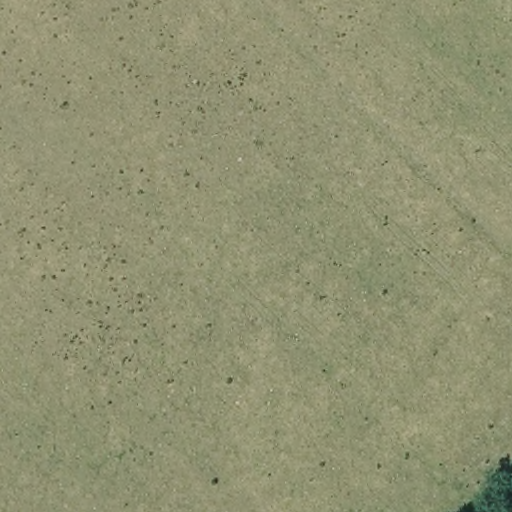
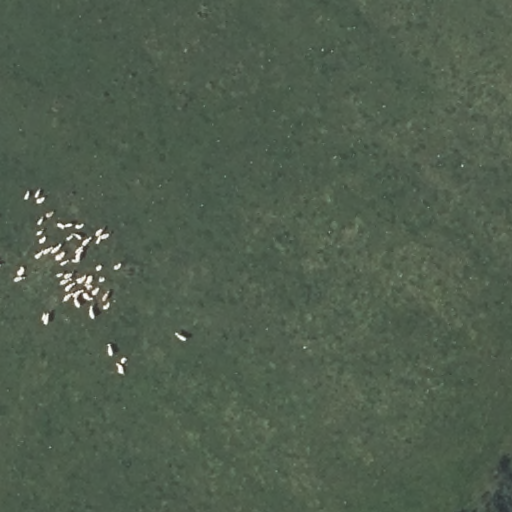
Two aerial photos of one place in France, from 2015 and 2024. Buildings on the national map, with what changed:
[]

